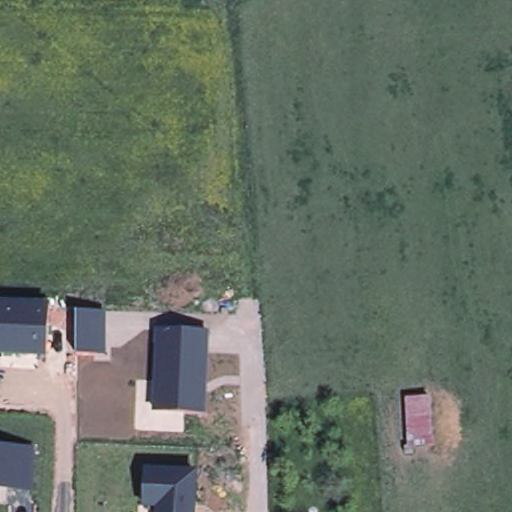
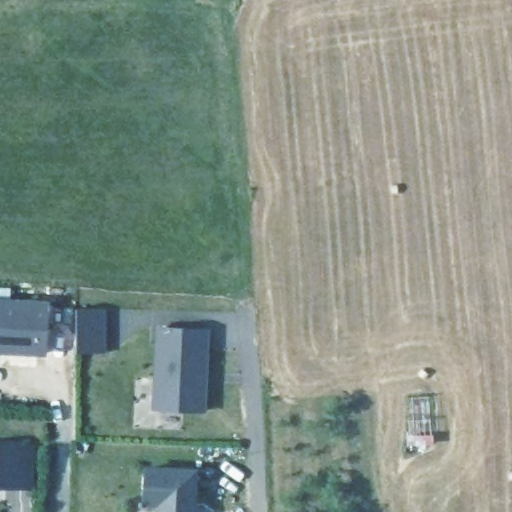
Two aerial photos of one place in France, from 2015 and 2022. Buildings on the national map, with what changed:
unchanged [(52,303),(50,351),(0,353),(0,302),(52,303)]
unchanged [(107,351),(75,351),(75,308),(107,308),(107,351)]
unchanged [(204,412),(153,410),(155,329),(210,330),(204,412)]
unchanged [(425,396),(429,443),(407,444),(404,398),(425,396)]
unchanged [(32,445),(30,486),(0,486),(0,444),(32,445)]
unchanged [(198,471),(196,512),(154,512),(154,509),(143,502),(143,468),(198,471)]

